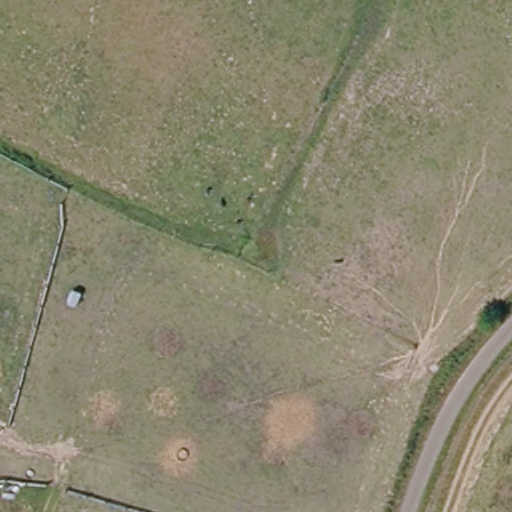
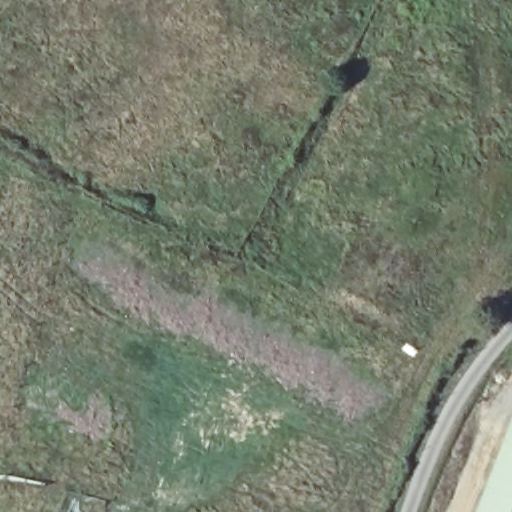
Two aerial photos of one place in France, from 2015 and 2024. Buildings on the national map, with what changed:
new [(512,512),(478,512),(512,422),(512,512)]

